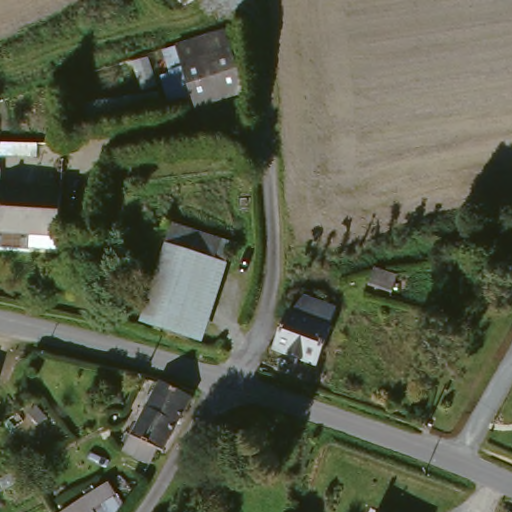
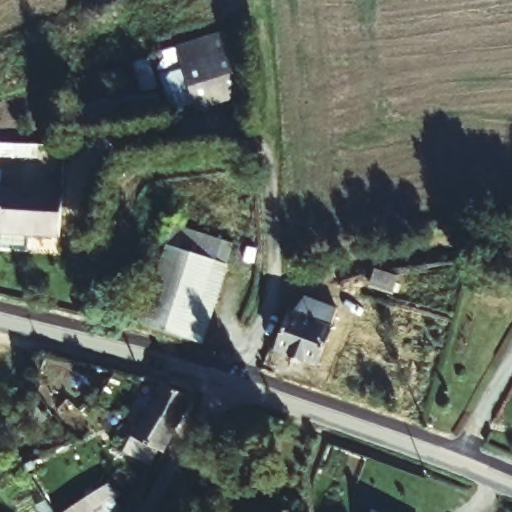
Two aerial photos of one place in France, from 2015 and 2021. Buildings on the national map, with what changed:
unchanged [(164,76),(186,69),(177,45),(182,44),(226,30),(233,28),(243,56),(235,58),(245,91),(199,106),(176,113),(164,76)]
unchanged [(161,89),(162,112),(76,123),(76,100),(161,89)]
unchanged [(59,235),(0,227),(0,161),(8,162),(7,181),(51,187),(65,189),(59,235)]
unchanged [(180,231),(182,225),(239,240),(231,265),(217,262),(174,251),(180,231)]
unchanged [(174,251),(217,262),(197,332),(190,330),(155,321),(174,251)]
unchanged [(283,346),(296,311),(303,312),(311,297),(342,308),(322,362),(283,346)]
unchanged [(149,398),(160,379),(200,395),(188,414),(169,444),(160,456),(143,450),(122,443),(131,428),(149,398)]
unchanged [(88,495),(112,479),(123,497),(104,512),(61,512),(88,495)]
unchanged [(373,500),(387,509),(395,508),(396,512),(366,512),(373,500)]

